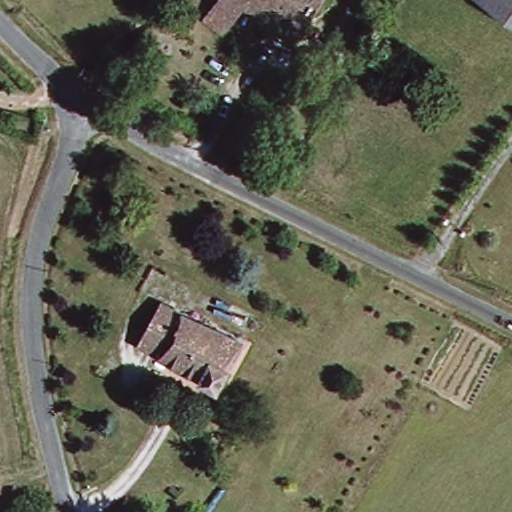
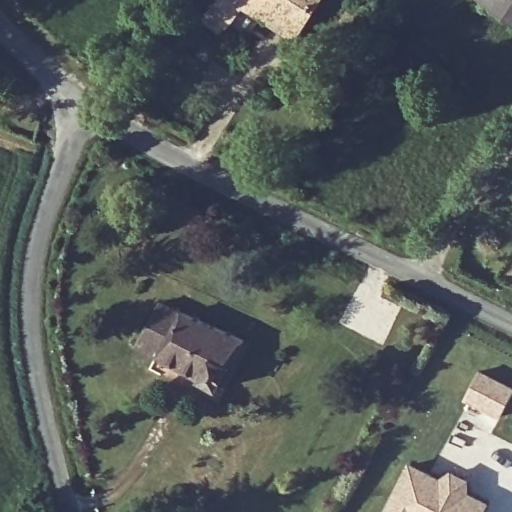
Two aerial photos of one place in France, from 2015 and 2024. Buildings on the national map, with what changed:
unchanged [(206,13),(216,0),(242,0),(223,26),(206,13)]
unchanged [(244,0),(318,0),(294,34),(244,0)]
unchanged [(495,0),(512,0),(512,12),(495,0)]
unchanged [(352,1),(373,14),(361,35),(356,44),(330,38),(335,30),(352,1)]
unchanged [(218,382),(138,339),(163,291),(244,335),(218,382)]
new [(483,371),(512,387),(512,400),(504,416),(469,397),(483,371)]
new [(417,462),(447,479),(457,471),(472,480),(473,494),(492,504),(488,512),(390,512),(417,462)]

